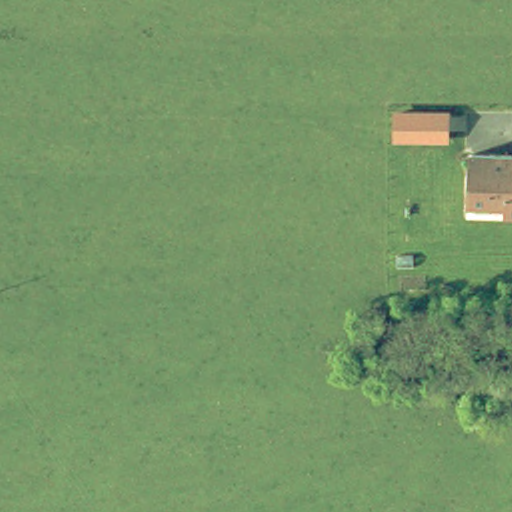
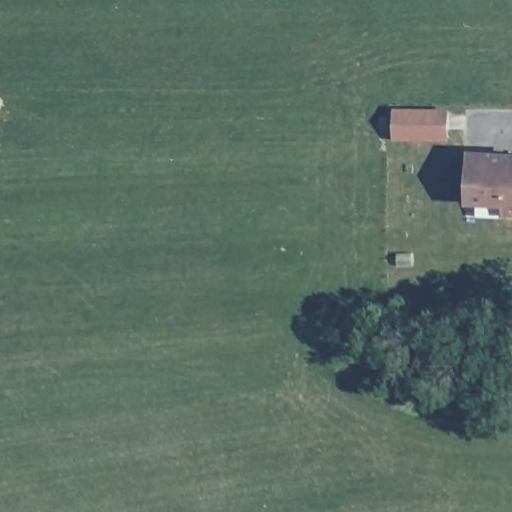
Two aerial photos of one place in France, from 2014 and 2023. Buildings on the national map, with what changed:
unchanged [(450,108),(450,140),(393,140),(395,107),(450,108)]
unchanged [(508,207),(509,199),(472,198),(473,148),(512,150),(512,207),(508,207)]

